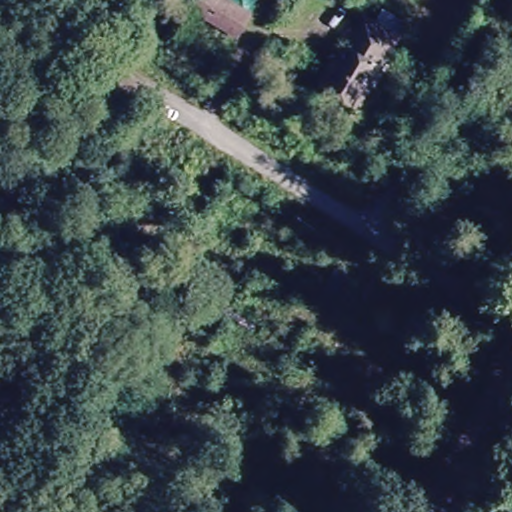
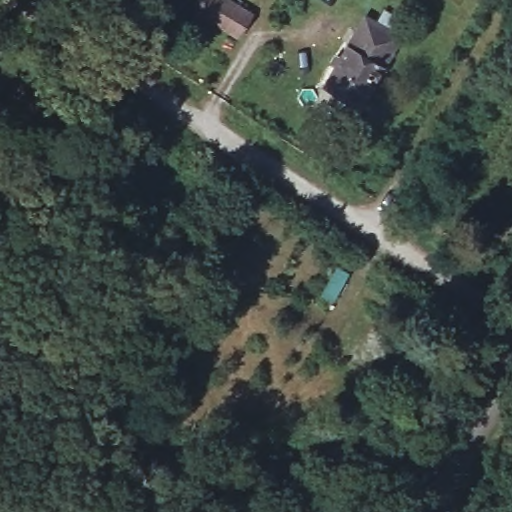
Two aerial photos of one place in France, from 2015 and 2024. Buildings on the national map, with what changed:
unchanged [(254,12),(242,36),(197,11),(203,0),(232,0),(254,12)]
unchanged [(326,85),(357,28),(364,16),(402,37),(395,47),(363,104),(326,85)]

